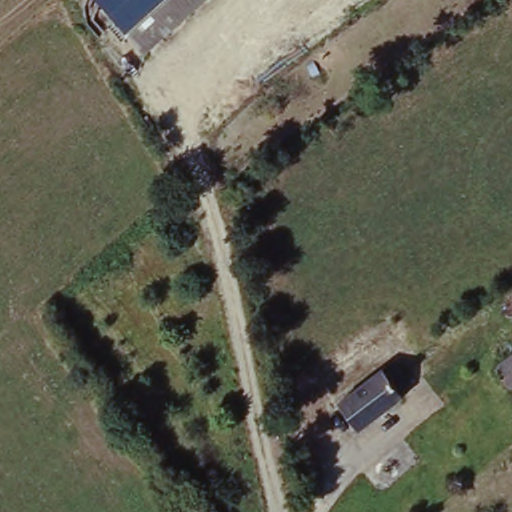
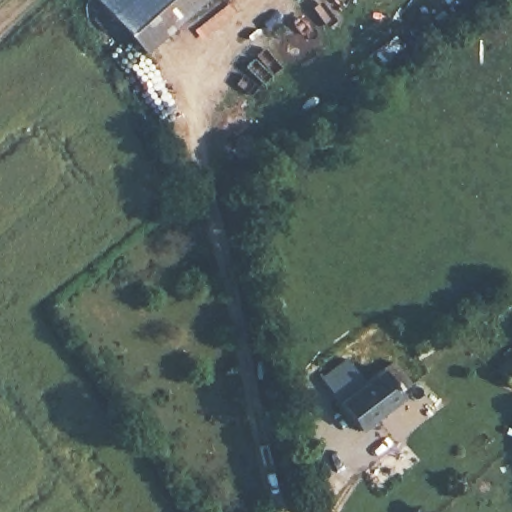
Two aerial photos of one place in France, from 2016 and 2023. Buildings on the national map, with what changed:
unchanged [(99,0),(188,0),(139,44),(99,0)]
unchanged [(508,375),(492,354),(512,340),(512,372),(508,375)]
unchanged [(412,379),(365,413),(345,386),(390,350),(412,379)]

